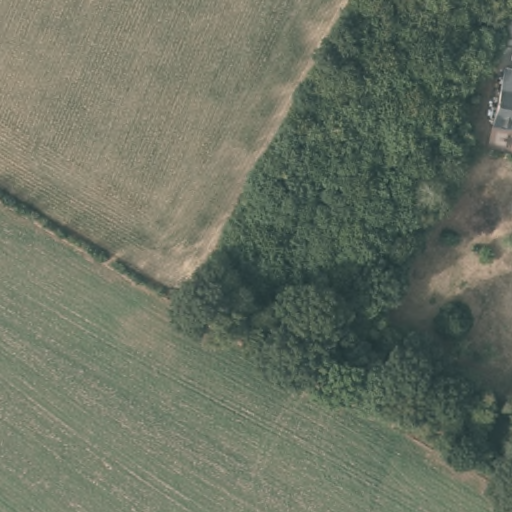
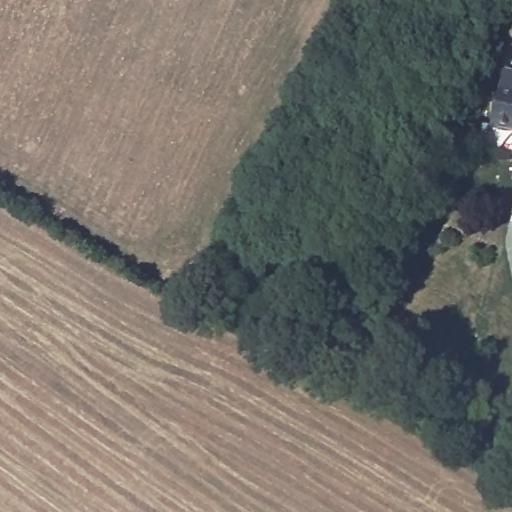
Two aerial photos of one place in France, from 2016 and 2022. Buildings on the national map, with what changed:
unchanged [(506,45),(512,17),(512,47),(506,45)]
unchanged [(512,72),(512,128),(493,124),(506,71),(512,72)]

